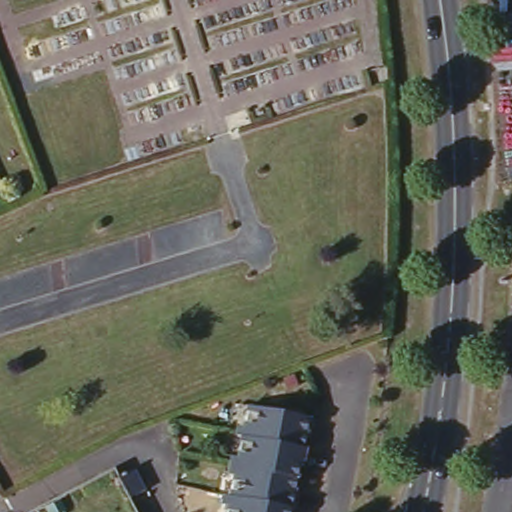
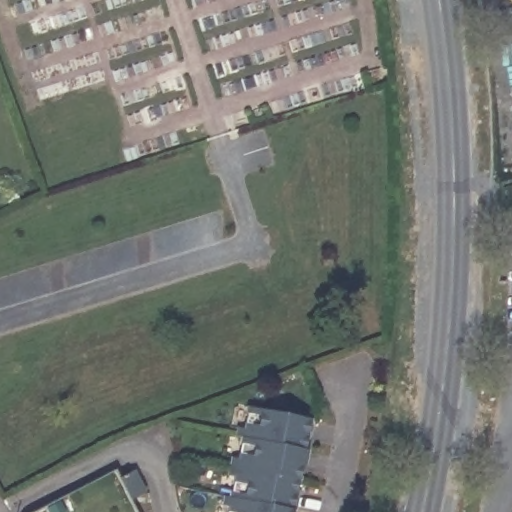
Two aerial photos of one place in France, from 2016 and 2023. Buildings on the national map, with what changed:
unchanged [(244,409),(311,420),(292,512),(224,512),(244,409)]
unchanged [(128,466),(140,488),(125,495),(114,475),(128,466)]
unchanged [(15,507),(18,512),(9,512),(15,507)]

